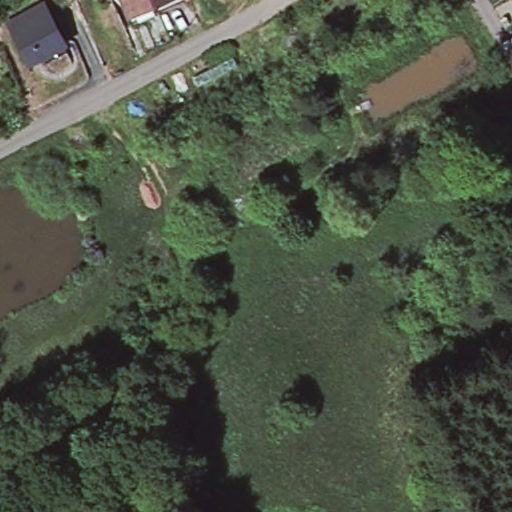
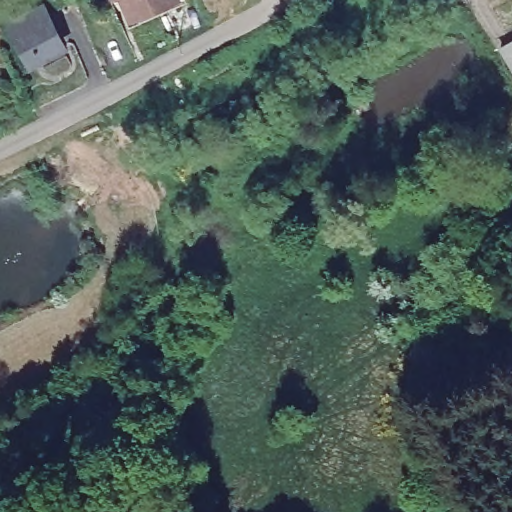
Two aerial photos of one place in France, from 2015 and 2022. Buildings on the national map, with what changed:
unchanged [(132,16),(125,0),(171,0),(166,2),(132,16)]
unchanged [(28,66),(15,40),(9,29),(42,12),(47,21),(58,42),(62,50),(39,61),(28,66)]

